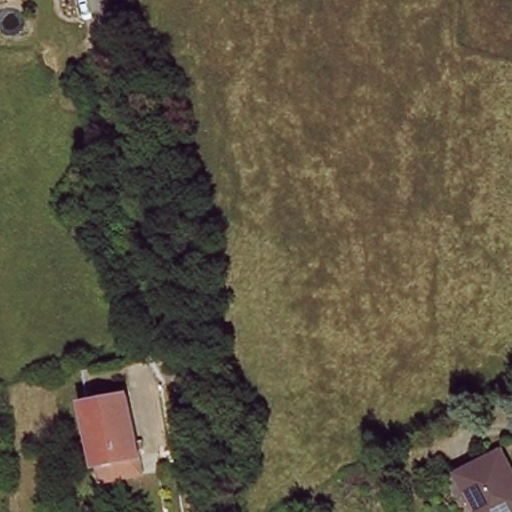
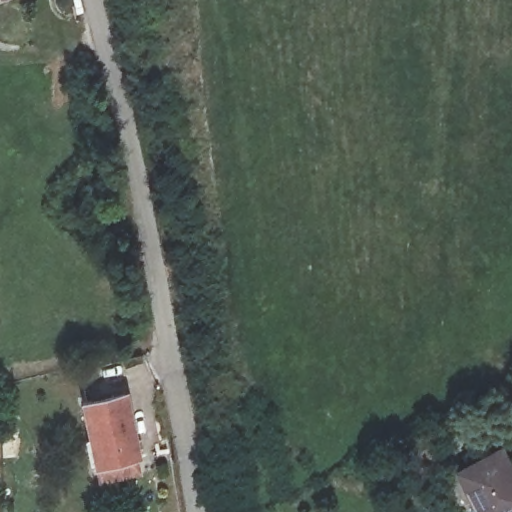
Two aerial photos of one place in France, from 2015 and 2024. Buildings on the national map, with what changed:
unchanged [(126,396),(140,460),(96,470),(84,405),(126,396)]
unchanged [(512,464),(512,512),(477,512),(460,476),(507,453),(512,464)]

